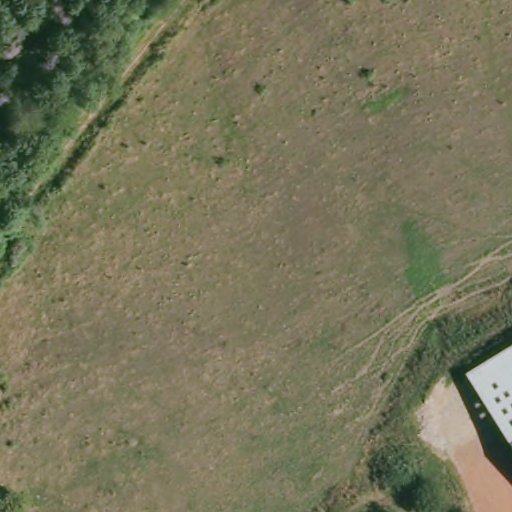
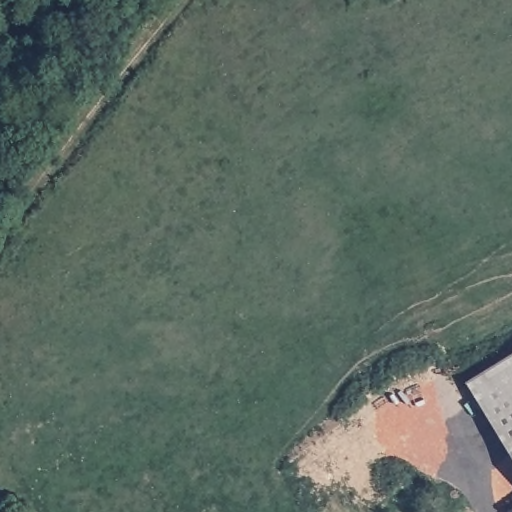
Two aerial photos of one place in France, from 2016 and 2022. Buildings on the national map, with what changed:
unchanged [(465,381),(512,352),(512,450),(465,381)]

